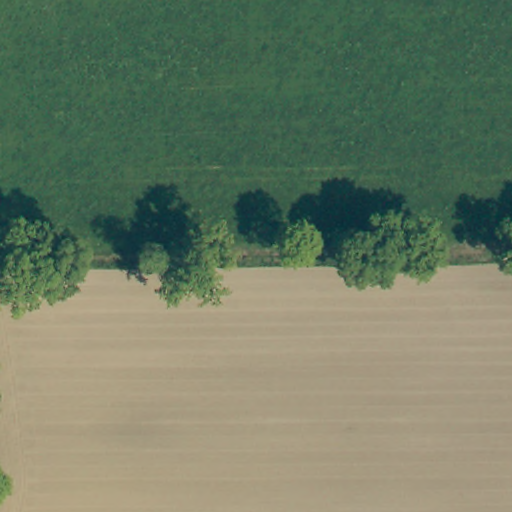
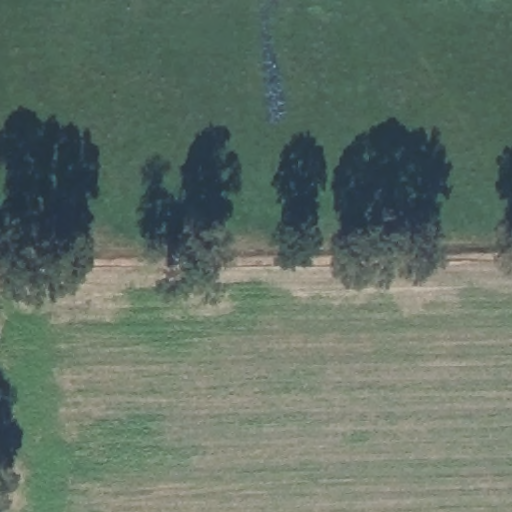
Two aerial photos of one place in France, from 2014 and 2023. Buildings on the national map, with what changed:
[]

